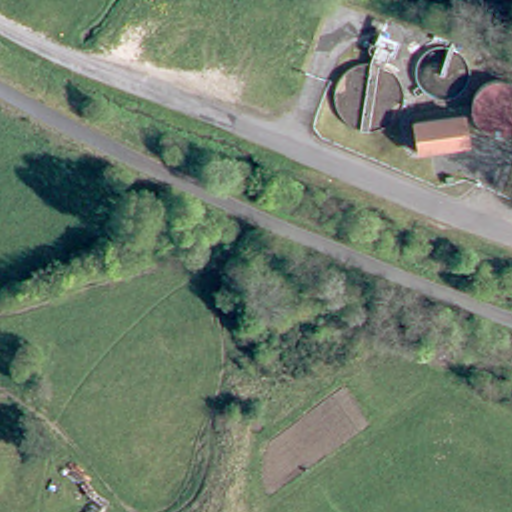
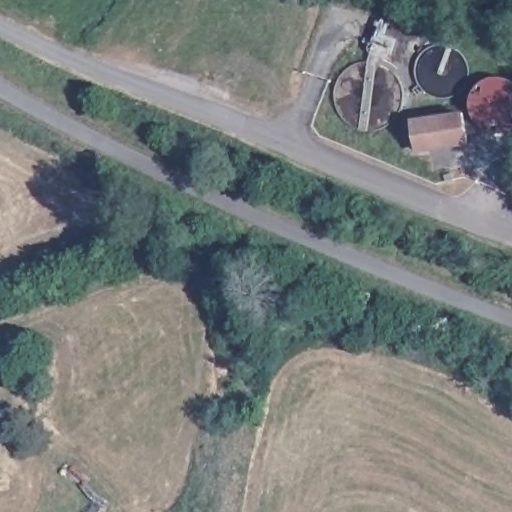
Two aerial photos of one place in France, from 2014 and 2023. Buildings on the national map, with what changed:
unchanged [(370,52),(370,51),(370,50),(371,49),(371,48),(372,48),(373,47),(375,46),(376,46),(378,40),(394,46),(388,63),(376,58),(375,58),(373,57),(372,57),(372,56),(371,55),(371,54),(370,54),(370,53),(370,52)]
unchanged [(460,126),(461,137),(418,144),(415,121),(413,114),(442,109),(456,107),(460,126)]
unchanged [(109,512),(102,512),(104,509),(109,512)]

